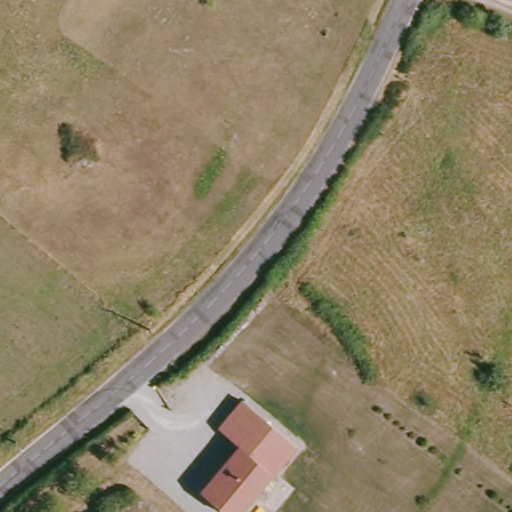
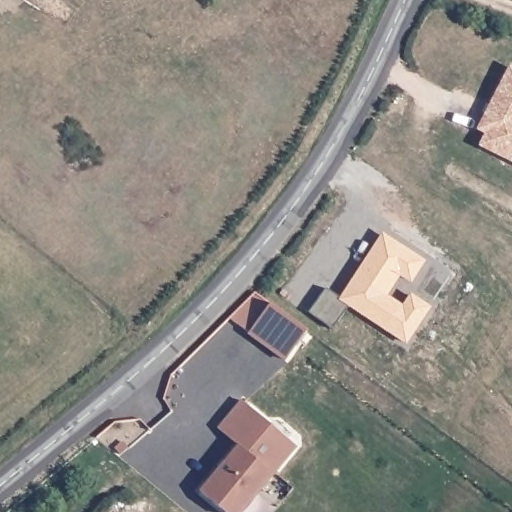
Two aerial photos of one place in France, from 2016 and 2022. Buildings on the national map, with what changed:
new [(479,146),(485,134),(477,129),(510,66),(512,67),(512,162),(479,146)]
new [(327,287),(342,298),(376,251),(387,237),(390,239),(426,266),(412,284),(402,277),(385,298),(403,311),(412,299),(429,312),(404,346),(349,305),(333,328),(309,310),(327,287)]
new [(250,333),(231,316),(255,292),(271,304),(307,330),(286,358),(250,333)]
unchanged [(289,438),(229,512),(194,484),(256,411),(289,438)]

